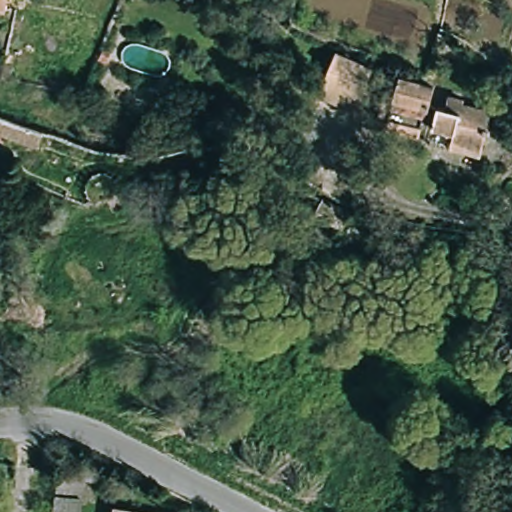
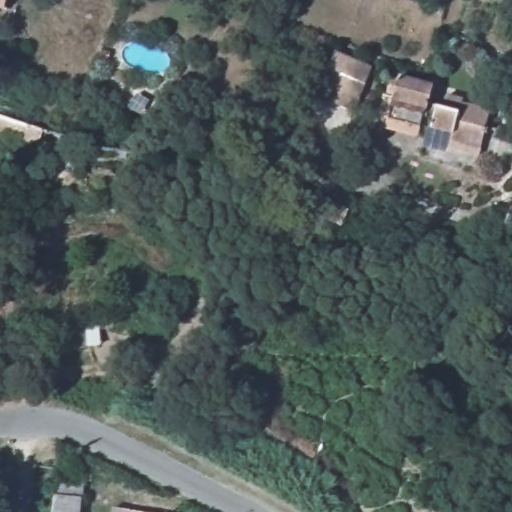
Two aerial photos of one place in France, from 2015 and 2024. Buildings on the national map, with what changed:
unchanged [(0,4),(0,0),(8,0),(7,6),(0,4)]
unchanged [(332,49),(372,67),(352,113),(313,95),(332,49)]
unchanged [(434,81),(433,90),(442,93),(439,105),(433,103),(429,117),(389,110),(396,76),(434,81)]
unchanged [(449,133),(427,126),(429,117),(433,103),(439,105),(442,93),(460,98),(459,101),(487,111),(476,146),(447,138),(449,133)]
unchanged [(342,217),(315,207),(319,188),(348,200),(342,217)]
unchanged [(62,484),(87,493),(80,512),(54,512),(62,484)]
unchanged [(117,509),(137,512),(117,512),(117,509)]

